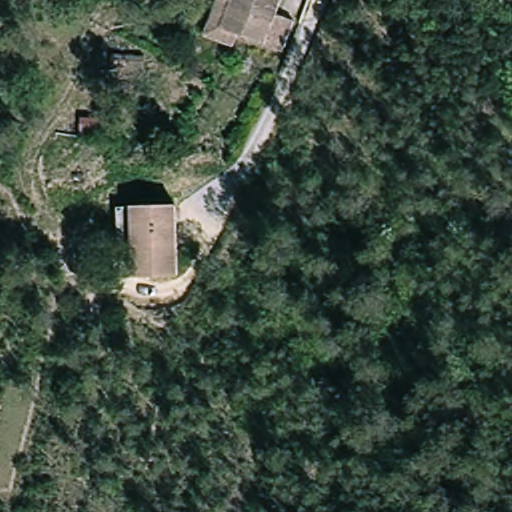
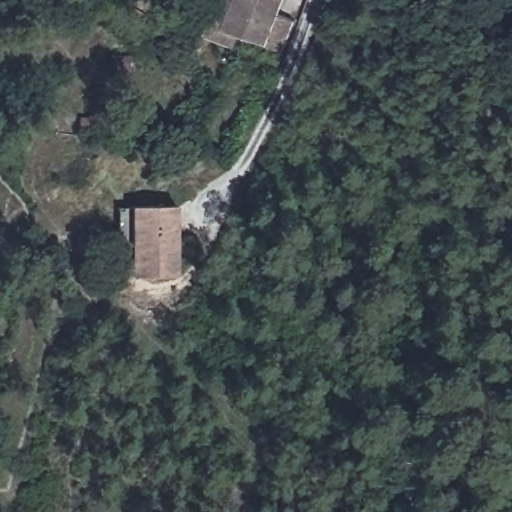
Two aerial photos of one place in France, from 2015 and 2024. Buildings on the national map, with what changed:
unchanged [(243,35),(237,48),(207,35),(220,0),(235,0),(225,28),(243,35)]
unchanged [(299,21),(287,51),(243,35),(225,28),(235,0),(286,0),(281,15),(299,21)]
unchanged [(188,276),(145,278),(143,252),(129,252),(127,210),(142,209),(186,208),(188,276)]

